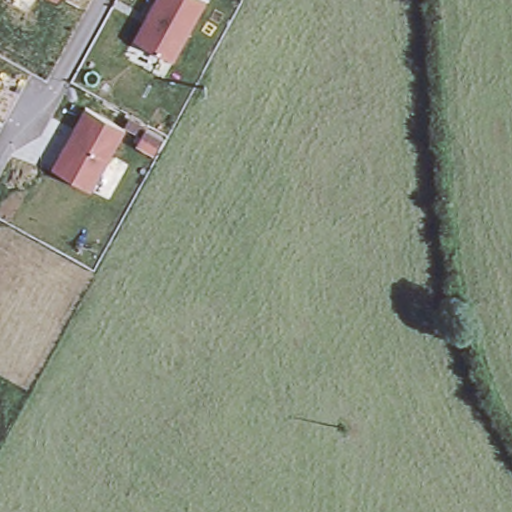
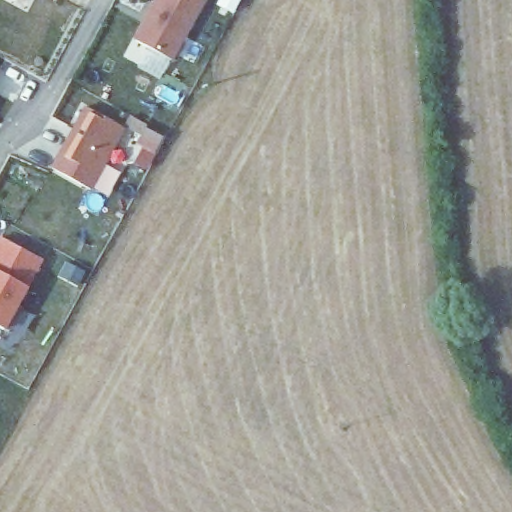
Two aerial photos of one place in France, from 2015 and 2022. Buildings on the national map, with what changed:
unchanged [(172,63),(130,38),(152,0),(208,0),(172,63)]
unchanged [(3,73),(0,78),(0,72),(3,73)]
unchanged [(127,130),(92,193),(49,166),(83,107),(127,130)]
new [(41,261),(29,288),(6,331),(0,328),(0,240),(41,261)]

